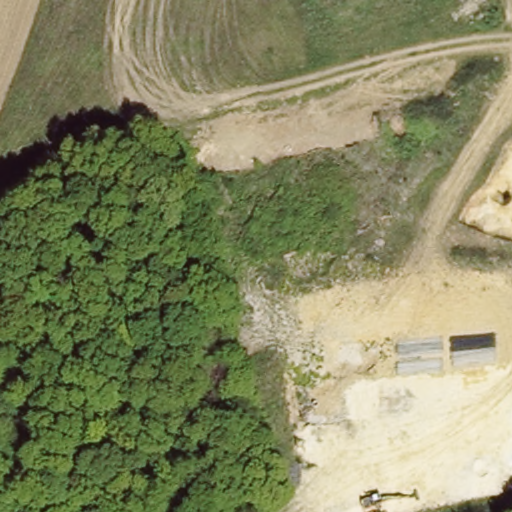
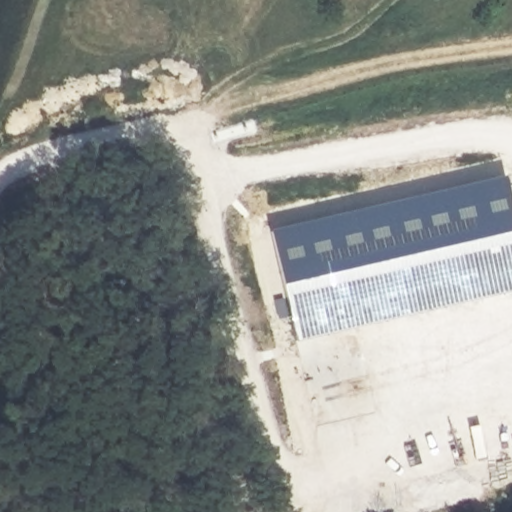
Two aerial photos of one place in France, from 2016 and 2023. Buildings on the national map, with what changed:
new [(507,177),(512,199),(512,292),(298,341),(273,230),(507,177)]

